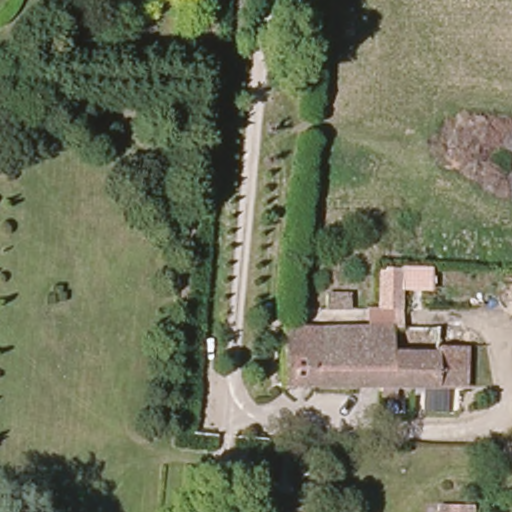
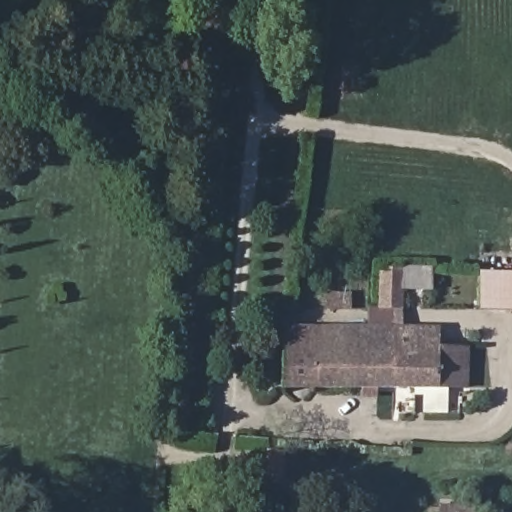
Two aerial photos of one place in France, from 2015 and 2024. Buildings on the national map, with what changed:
new [(512,267),(512,305),(480,305),(480,267),(512,267)]
unchanged [(282,385),(283,325),(433,323),(433,347),(433,348),(466,348),(467,383),(282,385)]

